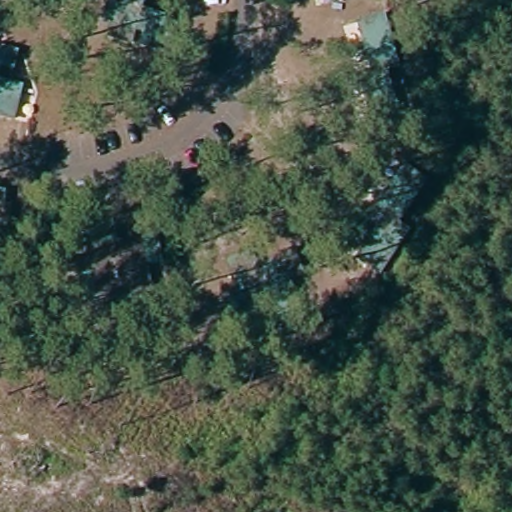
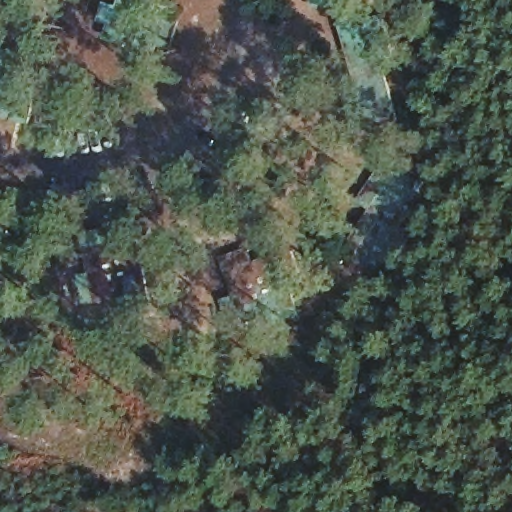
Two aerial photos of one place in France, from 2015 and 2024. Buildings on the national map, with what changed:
unchanged [(145,10),(170,20),(160,50),(145,45),(146,32),(105,19),(110,4),(125,7),(127,0),(147,0),(145,10)]
unchanged [(161,2),(156,0),(162,0),(161,2)]
unchanged [(325,4),(324,0),(344,0),(325,4)]
unchanged [(393,79),(379,82),(392,134),(365,139),(353,90),(366,86),(352,36),(377,29),(393,79)]
unchanged [(21,58),(19,74),(5,69),(0,84),(22,93),(14,124),(0,120),(4,105),(0,104),(0,51),(21,58)]
unchanged [(424,182),(395,222),(407,232),(379,276),(355,261),(385,217),(374,210),(405,166),(424,182)]
unchanged [(10,199),(8,227),(0,226),(0,198),(10,199)]
unchanged [(145,237),(155,288),(104,296),(95,243),(145,237)]
unchanged [(276,255),(295,304),(244,320),(229,270),(276,255)]

